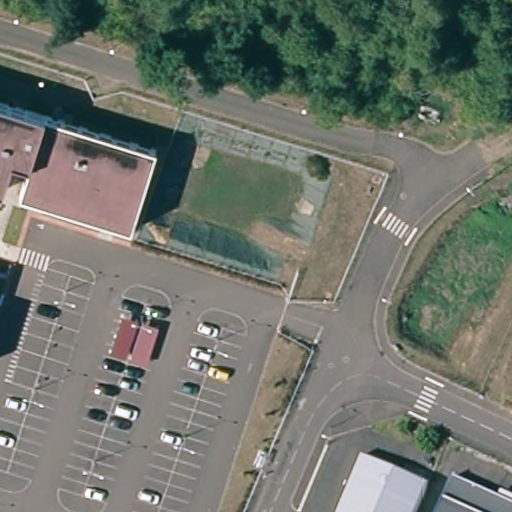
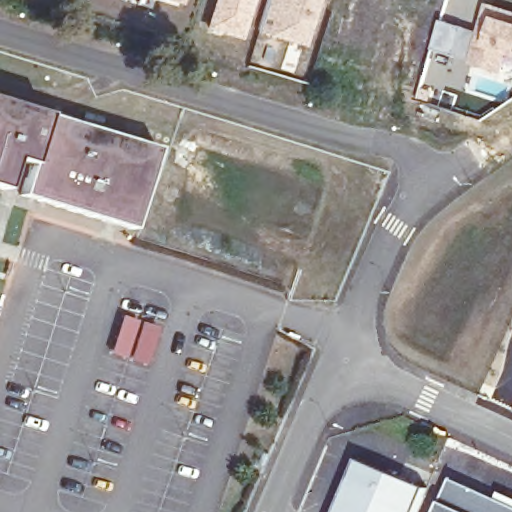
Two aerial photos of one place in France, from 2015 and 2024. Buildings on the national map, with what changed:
new [(182,4),(167,0),(184,0),(182,4)]
new [(215,0),(255,0),(241,39),(206,28),(215,0)]
new [(307,48),(270,36),(259,28),(267,0),(321,0),(307,48)]
new [(476,30),(485,2),(512,9),(512,56),(507,55),(500,73),(467,61),(476,30)]
new [(439,18),(476,30),(467,61),(430,49),(439,18)]
unchanged [(30,163),(12,158),(3,189),(0,188),(0,100),(45,113),(30,163)]
unchanged [(155,148),(130,229),(19,194),(30,163),(45,113),(155,148)]
unchanged [(337,512),(360,459),(429,489),(419,512),(337,512)]
unchanged [(512,503),(512,512),(436,512),(453,475),(512,503)]

